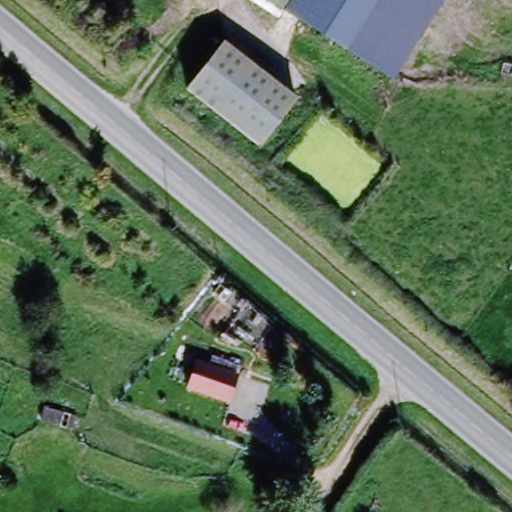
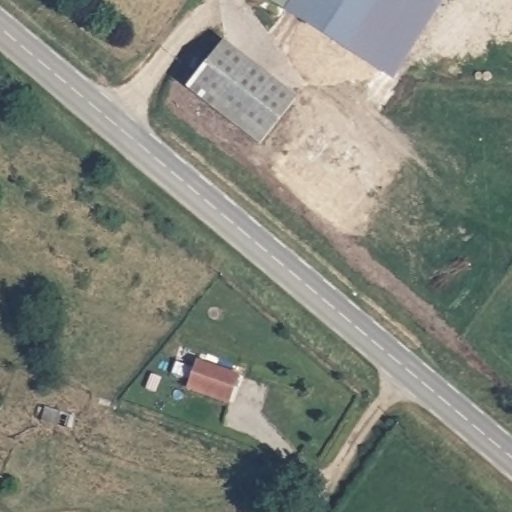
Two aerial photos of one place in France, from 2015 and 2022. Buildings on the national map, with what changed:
unchanged [(383,0),(352,53),(264,0),(383,0)]
unchanged [(383,0),(434,0),(388,75),(352,53),(383,0)]
unchanged [(180,96),(219,44),(293,97),(255,150),(180,96)]
unchanged [(190,361),(237,373),(228,407),(180,395),(190,361)]

